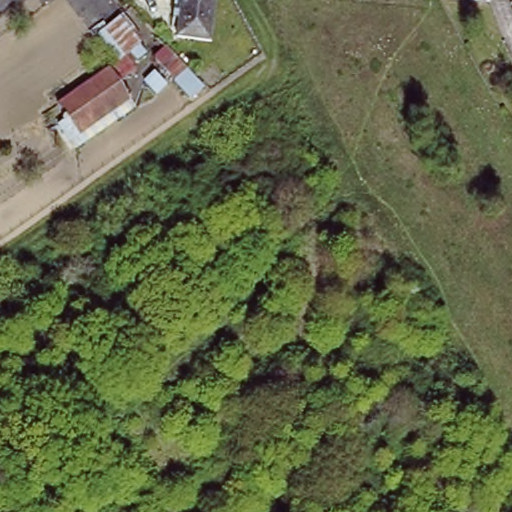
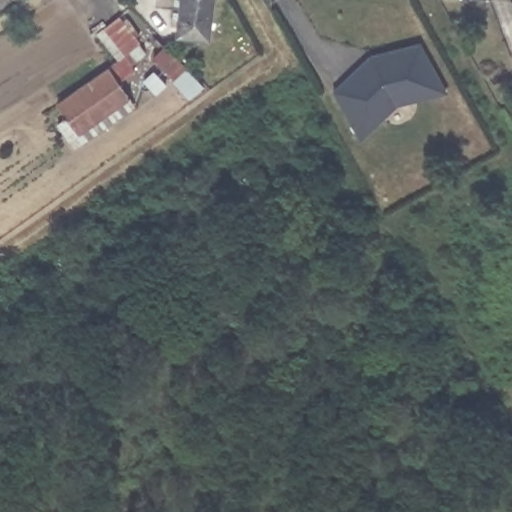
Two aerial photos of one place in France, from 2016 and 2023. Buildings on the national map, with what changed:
unchanged [(179,26),(182,0),(215,0),(212,30),(179,26)]
unchanged [(54,124),(65,116),(55,104),(112,63),(93,35),(123,14),(150,50),(117,75),(131,95),(138,105),(74,149),(54,124)]
unchanged [(152,55),(166,43),(204,87),(189,99),(152,55)]
new [(371,56),(420,44),(447,93),(397,105),(361,140),(334,91),(371,56)]
unchanged [(142,79),(155,69),(167,85),(155,95),(142,79)]

